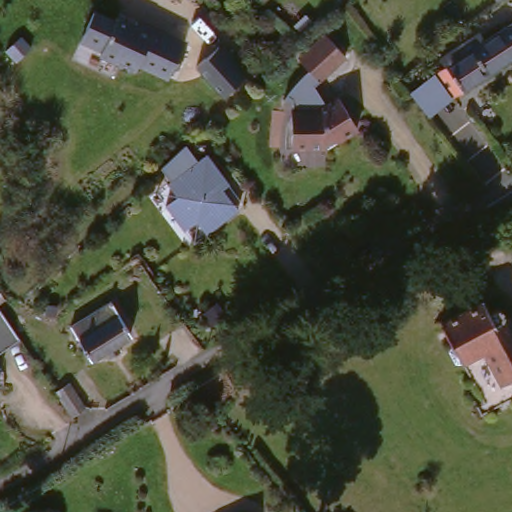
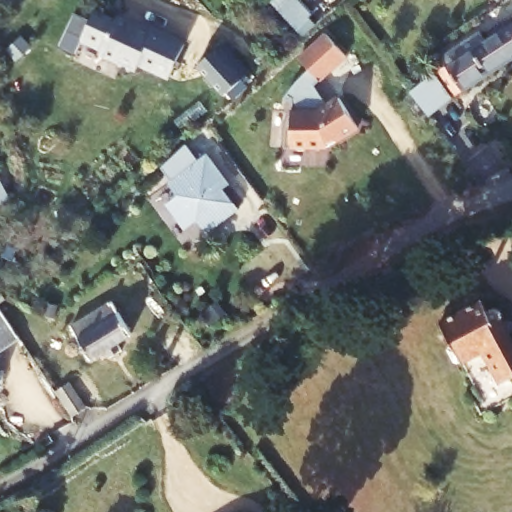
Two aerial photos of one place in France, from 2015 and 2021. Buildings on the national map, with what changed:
unchanged [(472,15),(462,0),(512,0),(512,3),(495,15),(489,4),(472,15)]
unchanged [(101,54),(80,41),(95,17),(115,29),(117,25),(133,35),(134,35),(118,57),(110,69),(97,60),(101,54)]
unchanged [(440,79),(435,70),(474,44),(479,52),(512,29),(512,66),(430,124),(413,96),(440,79)]
unchanged [(134,35),(136,31),(182,56),(162,90),(136,75),(122,84),(115,79),(113,71),(110,69),(118,57),(134,35)]
unchanged [(222,38),(251,71),(220,100),(190,66),(222,38)]
unchanged [(346,68),(318,91),(295,62),(324,39),(346,68)]
unchanged [(312,122),(338,109),(358,141),(322,156),(283,151),(285,119),(312,122)]
unchanged [(203,240),(195,230),(182,238),(163,211),(175,202),(165,190),(204,161),(227,193),(221,197),(229,207),(237,218),(203,240)]
unchanged [(501,300),(512,322),(512,381),(498,390),(482,361),(461,372),(440,330),(501,300)]
unchanged [(106,313),(125,341),(92,363),(73,335),(106,313)]
unchanged [(12,337),(21,352),(0,358),(0,327),(4,326),(12,337)]
unchanged [(79,391),(95,414),(79,426),(66,405),(63,402),(79,391)]

